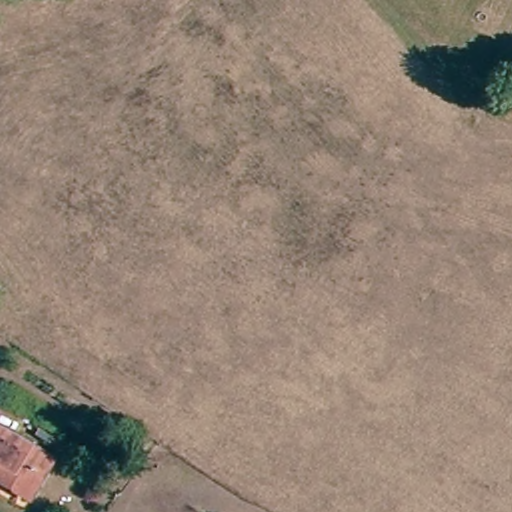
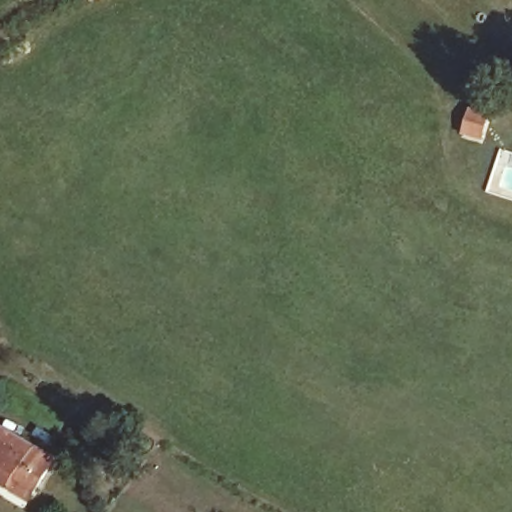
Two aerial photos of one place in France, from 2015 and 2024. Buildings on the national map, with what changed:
unchanged [(63,458),(37,500),(15,487),(17,484),(1,474),(0,476),(0,429),(4,422),(63,458)]

